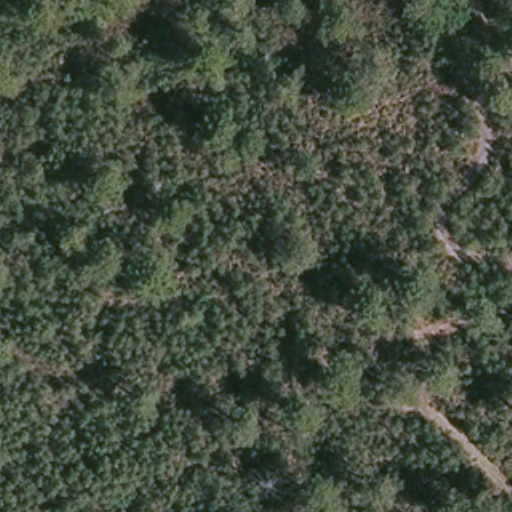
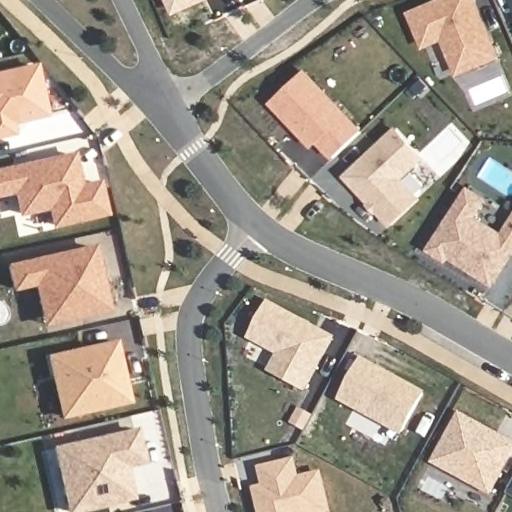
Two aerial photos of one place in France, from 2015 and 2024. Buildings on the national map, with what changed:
new [(169,0),(197,0),(174,10),(169,0)]
new [(442,37),(424,45),(410,13),(440,0),(473,0),(478,12),(482,22),(497,56),(457,72),(442,37)]
new [(34,67),(44,115),(19,121),(18,117),(8,119),(11,133),(0,135),(0,75),(34,67)]
new [(305,72),(360,131),(333,156),(317,139),(312,144),(273,102),(305,72)]
new [(420,99),(409,87),(420,77),(430,89),(420,99)]
new [(395,130),(421,157),(398,179),(416,198),(390,223),(346,176),(395,130)]
new [(71,155),(77,177),(72,178),(74,188),(97,183),(104,213),(53,225),(49,207),(20,213),(14,191),(0,194),(0,172),(71,155)]
new [(449,255),(446,259),(431,249),(469,189),(485,200),(474,217),(503,236),(512,222),(512,254),(503,268),(493,283),(449,255)]
new [(61,320),(57,300),(40,305),(35,283),(13,288),(9,267),(92,248),(95,261),(97,267),(106,310),(61,320)]
new [(252,337),(270,304),(332,339),(305,389),(272,371),(242,355),(252,337)]
new [(126,402),(61,416),(48,358),(113,343),(126,402)]
new [(401,432),(341,399),(362,361),(421,394),(401,432)]
new [(434,461),(460,415),(512,444),(512,450),(489,491),(434,461)]
new [(130,498),(70,512),(67,512),(62,489),(71,487),(66,466),(57,468),(53,450),(134,431),(141,463),(117,468),(123,467),(125,477),(130,498)]
new [(256,490),(266,487),(262,469),(294,461),(298,479),(320,474),(329,511),(325,512),(261,512),(256,490)]
new [(512,484),(512,493),(509,491),(512,484)]

